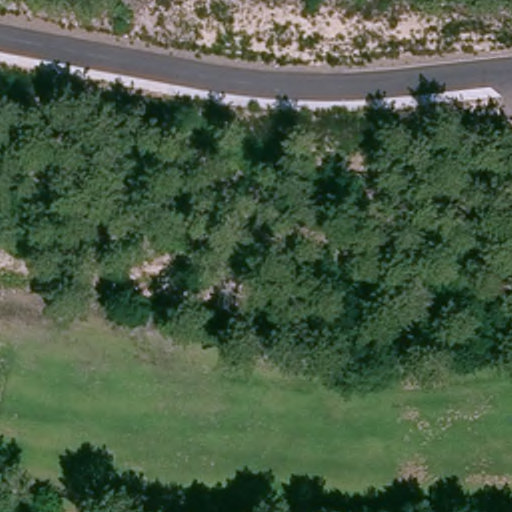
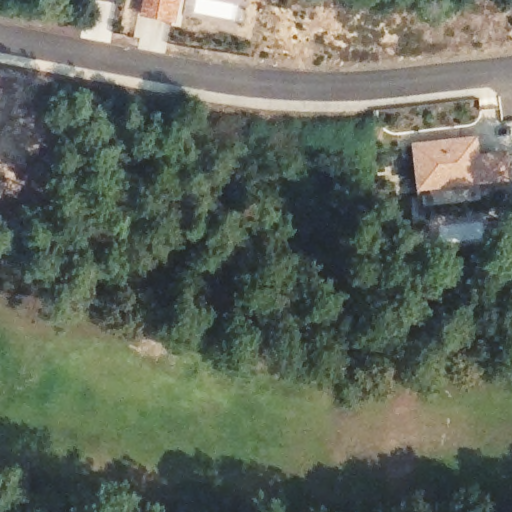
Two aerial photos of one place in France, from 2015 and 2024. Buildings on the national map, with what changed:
new [(182,0),(177,25),(170,24),(164,53),(137,47),(139,38),(134,36),(137,16),(141,0),(182,0)]
new [(477,134),(480,152),(509,150),(512,180),(482,183),(481,199),(422,205),(417,188),(412,142),(477,134)]

